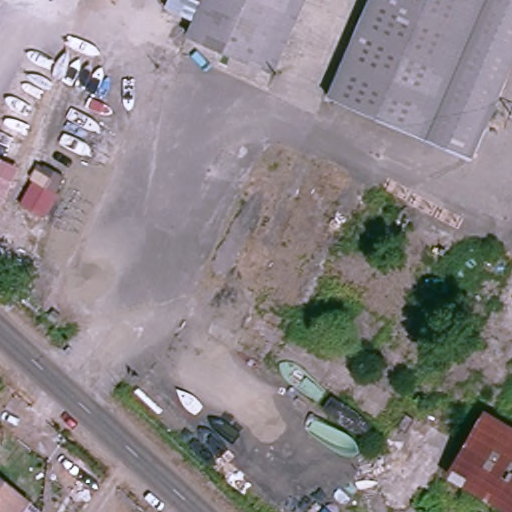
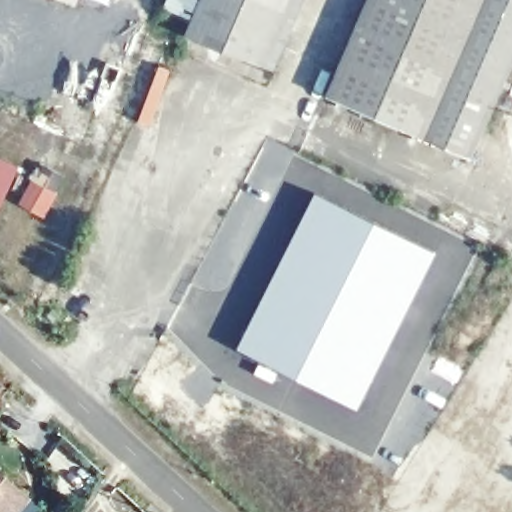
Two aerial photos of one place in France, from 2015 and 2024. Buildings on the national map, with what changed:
new [(109,4),(100,0),(110,0),(109,4)]
new [(166,0),(203,0),(194,20),(163,8),(166,0)]
unchanged [(280,68),(190,29),(203,0),(309,0),(280,68)]
unchanged [(478,155),(330,91),(369,0),(512,0),(512,74),(478,155)]
unchanged [(35,162),(61,174),(41,219),(15,205),(35,162)]
unchanged [(0,196),(0,164),(13,170),(0,196)]
new [(313,192),(436,252),(356,411),(278,372),(272,383),(253,374),(258,362),(234,349),(313,192)]
demolished [(490,409),(512,424),(512,504),(454,470),(490,409)]
unchanged [(17,512),(0,512),(0,484),(24,504),(17,512)]

